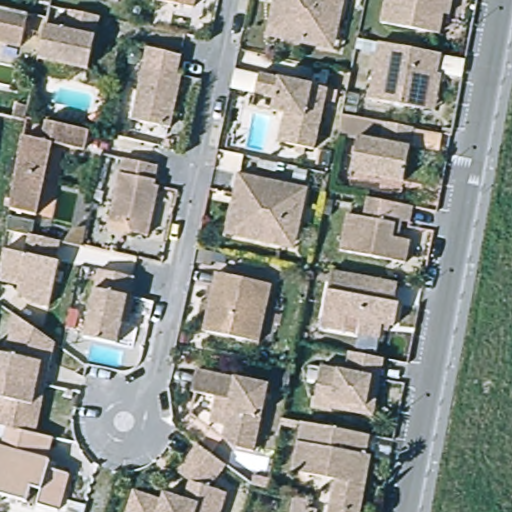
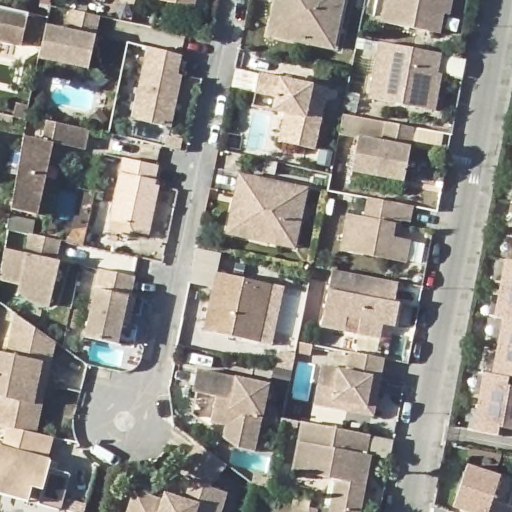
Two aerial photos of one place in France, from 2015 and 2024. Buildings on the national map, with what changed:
unchanged [(194,3),(179,0),(195,0),(194,3)]
unchanged [(328,49),(263,35),(270,0),(338,0),(328,49)]
unchanged [(445,15),(440,14),(435,34),(378,23),(382,0),(448,0),(445,15)]
unchanged [(23,42),(0,36),(0,2),(30,9),(23,42)]
unchanged [(89,80),(40,69),(47,36),(67,40),(71,21),(101,27),(89,80)]
unchanged [(172,123),(132,115),(148,43),(182,51),(178,70),(183,71),(172,123)]
unchanged [(435,112),(370,99),(380,43),(442,54),(437,74),(442,75),(435,112)]
unchanged [(320,150),(285,142),(291,114),(279,111),(282,97),(261,93),(265,75),(333,89),(320,150)]
unchanged [(38,216),(11,210),(24,138),(43,142),(47,122),(68,127),(89,131),(85,151),(53,144),(38,216)]
unchanged [(405,187),(353,177),(359,143),(382,148),(385,128),(415,133),(405,187)]
unchanged [(154,186),(159,186),(149,236),(133,232),(130,225),(111,221),(124,159),(158,166),(154,186)]
unchanged [(295,249),(228,235),(241,175),(308,189),(295,249)]
unchanged [(407,264),(342,252),(348,215),(365,218),(369,199),(377,200),(414,207),(410,223),(402,221),(399,239),(411,241),(407,264)]
unchanged [(22,295),(20,284),(0,279),(0,267),(7,245),(65,255),(57,306),(22,295)]
new [(508,378),(507,386),(512,387),(512,430),(500,428),(498,435),(472,430),(482,373),(492,375),(502,320),(493,318),(504,260),(512,261),(512,379),(508,378)]
unchanged [(125,325),(118,324),(113,345),(81,338),(95,270),(121,276),(130,278),(126,297),(131,298),(125,325)]
unchanged [(396,327),(384,324),(382,338),(359,334),(362,319),(348,316),(345,331),(323,327),(333,271),(399,283),(395,303),(400,304),(396,327)]
unchanged [(253,343),(200,332),(213,273),(266,285),(253,343)]
unchanged [(40,506),(43,488),(32,485),(27,503),(0,495),(0,446),(2,446),(6,427),(0,426),(0,353),(6,354),(14,313),(55,343),(36,434),(55,438),(48,468),(71,474),(61,511),(40,506)]
unchanged [(374,416),(315,405),(322,367),(347,371),(350,353),(359,355),(384,360),(374,416)]
unchanged [(255,451),(241,448),(225,437),(228,425),(212,421),(217,396),(193,391),(197,371),(269,386),(255,451)]
unchanged [(337,480),(293,472),(303,423),(365,435),(370,436),(367,455),(372,456),(361,512),(331,512),(331,510),(337,480)]
unchanged [(162,500),(165,493),(184,499),(189,481),(175,472),(197,443),(226,466),(210,487),(228,494),(222,512),(125,512),(132,490),(162,500)]
new [(492,501),(489,512),(462,512),(452,509),(467,464),(502,476),(512,479),(512,506),(492,501)]
unchanged [(312,510),(312,512),(304,512),(305,509),(312,510)]

